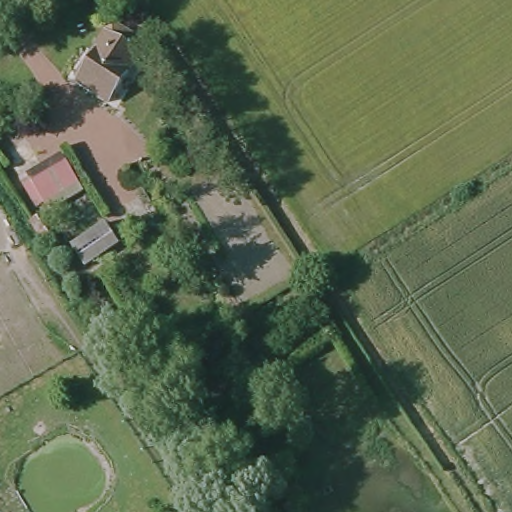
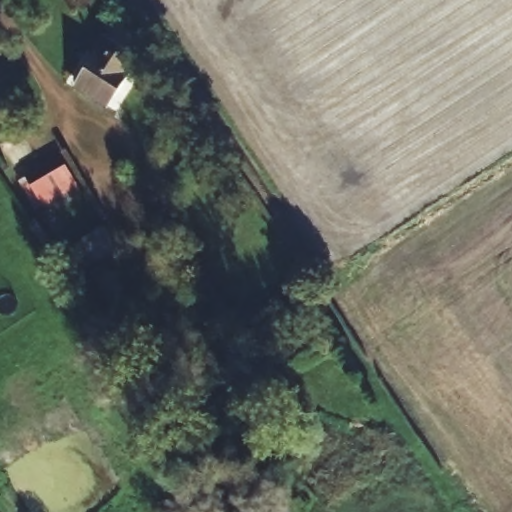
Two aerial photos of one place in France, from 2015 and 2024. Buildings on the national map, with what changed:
unchanged [(141,53),(112,102),(105,113),(73,94),(89,68),(110,34),(141,53)]
unchanged [(25,178),(60,156),(80,192),(44,214),(25,178)]
unchanged [(160,209),(136,224),(121,202),(143,186),(160,209)]
unchanged [(122,248),(87,271),(68,249),(105,222),(122,248)]

